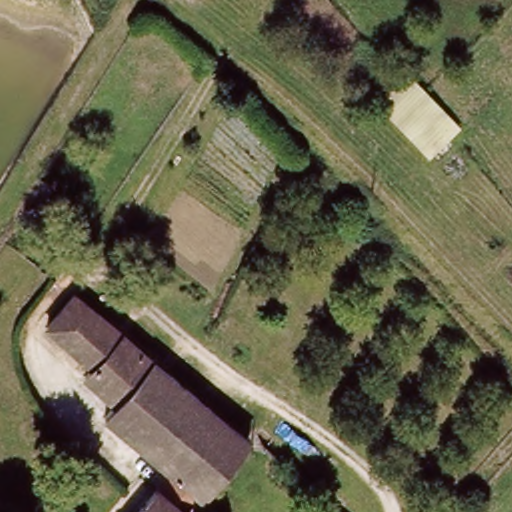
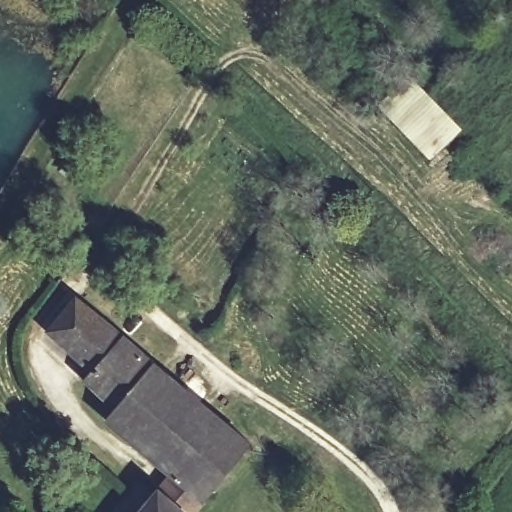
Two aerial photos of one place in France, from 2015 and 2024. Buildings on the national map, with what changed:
unchanged [(409,76),(464,129),(432,163),(379,107),(409,76)]
unchanged [(177,465),(198,481),(179,508),(184,512),(144,512),(172,473),(164,467),(166,464),(112,416),(123,401),(92,375),(100,363),(57,326),(82,295),(219,412),(177,465)]
unchanged [(251,436),(195,512),(184,512),(179,508),(198,481),(177,465),(219,412),(221,410),(251,436)]

